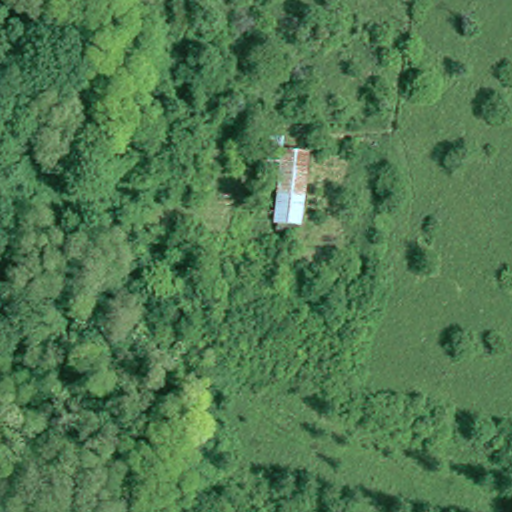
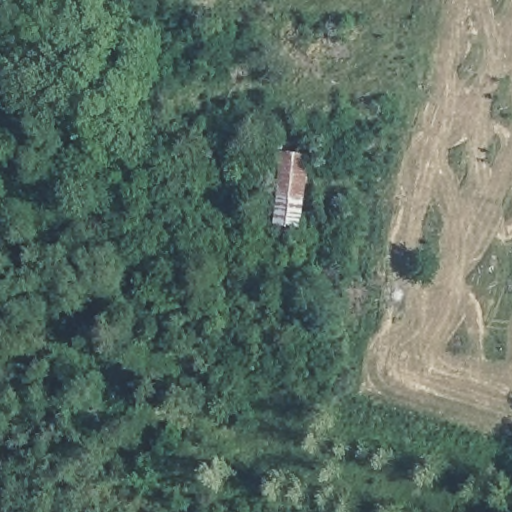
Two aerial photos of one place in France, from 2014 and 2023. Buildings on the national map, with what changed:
unchanged [(312,154),(305,224),(277,223),(283,156),(312,154)]

